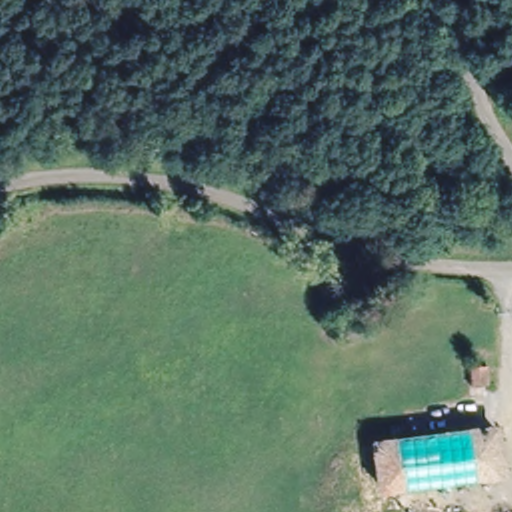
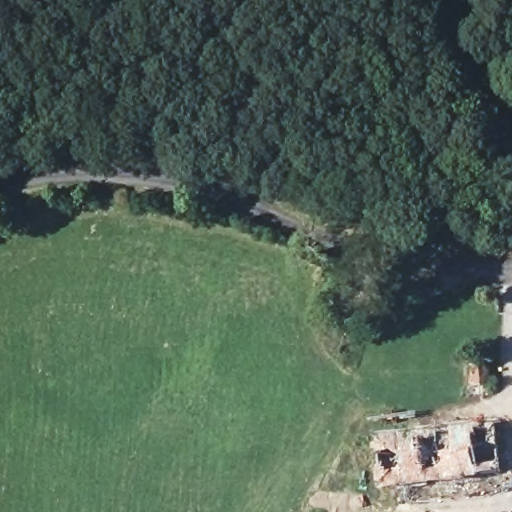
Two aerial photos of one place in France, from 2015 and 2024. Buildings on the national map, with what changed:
unchanged [(487,366),(489,384),(471,385),(470,366),(487,366)]
unchanged [(499,469),(389,482),(392,506),(361,510),(361,509),(356,469),(379,467),(376,436),(493,423),(499,469)]

